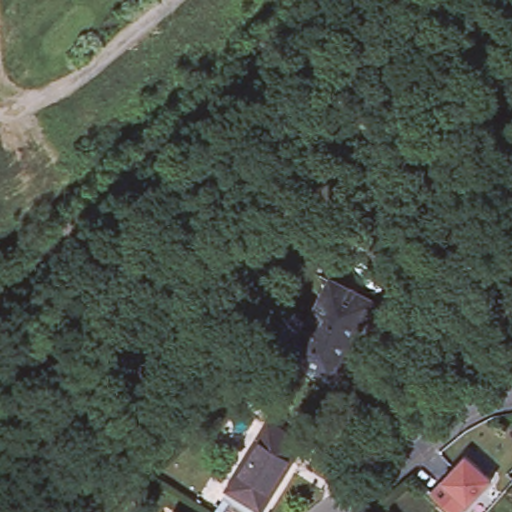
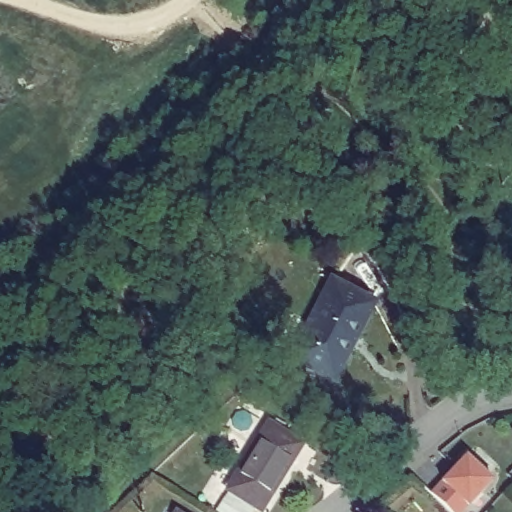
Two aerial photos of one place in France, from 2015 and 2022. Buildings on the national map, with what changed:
unchanged [(294,355),(329,275),(374,295),(366,311),(335,375),(300,358),(294,355)]
unchanged [(261,505),(227,484),(269,416),(302,437),(261,505)]
unchanged [(463,512),(447,512),(427,492),(467,455),(492,480),(463,512)]
unchanged [(223,490),(244,503),(239,512),(236,512),(217,500),(223,490)]

